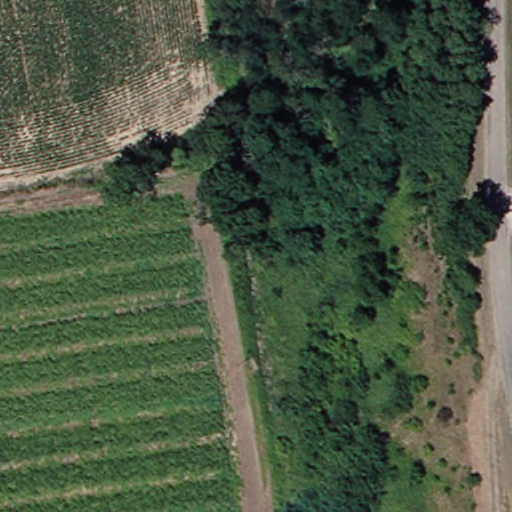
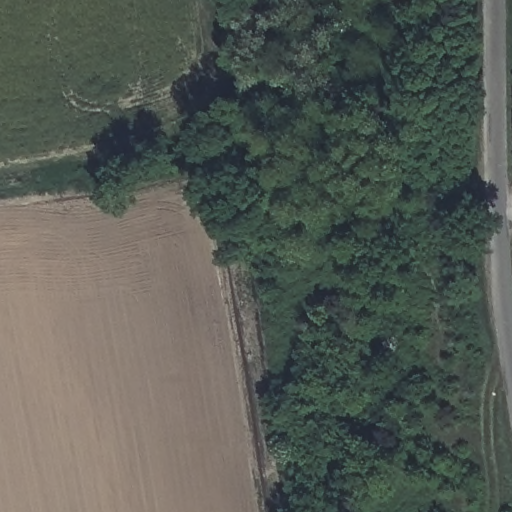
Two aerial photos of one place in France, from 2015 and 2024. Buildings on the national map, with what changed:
[]

